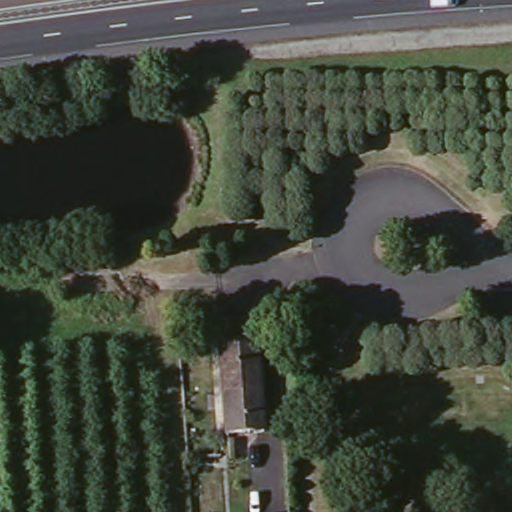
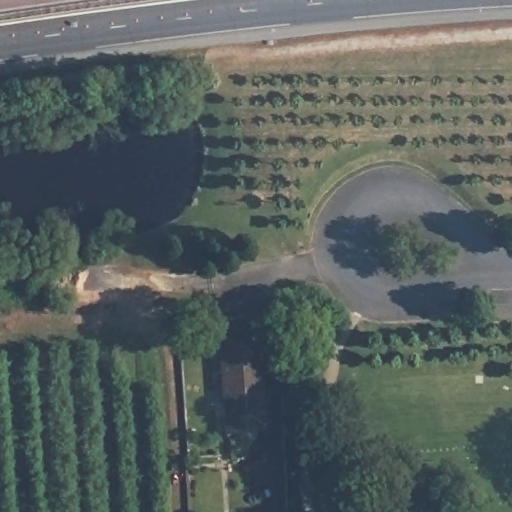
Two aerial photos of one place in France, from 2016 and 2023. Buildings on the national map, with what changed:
unchanged [(256,343),(263,430),(227,434),(220,345),(256,343)]

